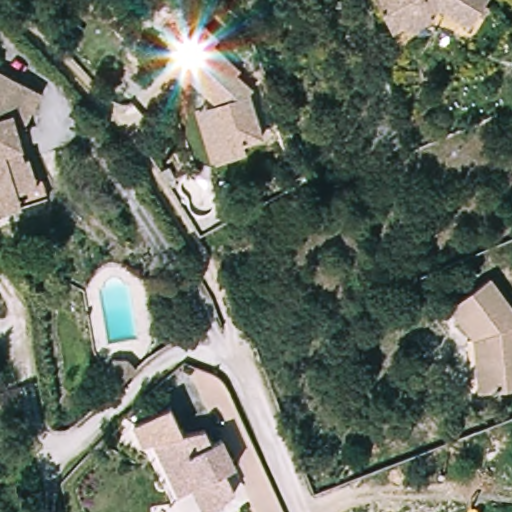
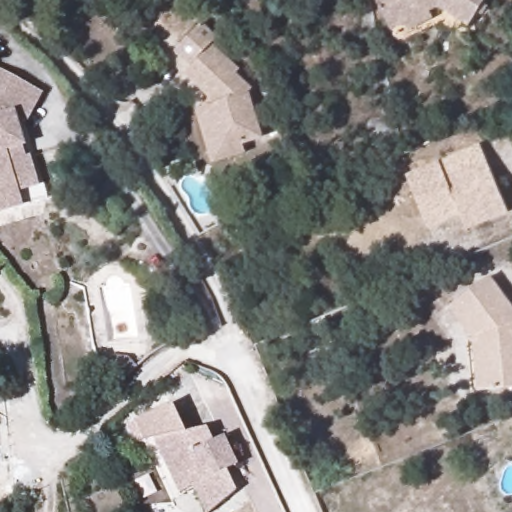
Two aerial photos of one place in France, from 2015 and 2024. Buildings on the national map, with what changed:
unchanged [(416,33),(411,23),(406,26),(402,29),(399,23),(388,0),(490,0),(474,28),(443,10),(435,14),(438,22),(416,33)]
unchanged [(195,103),(212,98),(181,68),(187,60),(173,46),(201,16),(216,31),(211,38),(238,63),(234,68),(251,83),(261,133),(241,138),(244,148),(212,158),(195,103)]
unchanged [(36,85),(45,90),(30,119),(21,114),(26,132),(1,140),(5,152),(20,148),(23,157),(30,155),(36,174),(39,184),(21,189),(26,206),(0,214),(0,66),(3,67),(36,85)]
new [(482,146),(510,213),(467,231),(461,218),(430,231),(408,178),(482,146)]
unchanged [(482,391),(476,338),(451,305),(492,274),(512,301),(512,388),(482,391)]
unchanged [(96,363),(114,347),(131,367),(113,383),(96,363)]
unchanged [(143,435),(136,417),(170,401),(182,427),(143,435)]
unchanged [(203,427),(209,438),(221,433),(235,462),(223,468),(233,489),(206,511),(192,483),(177,490),(151,436),(203,427)]

